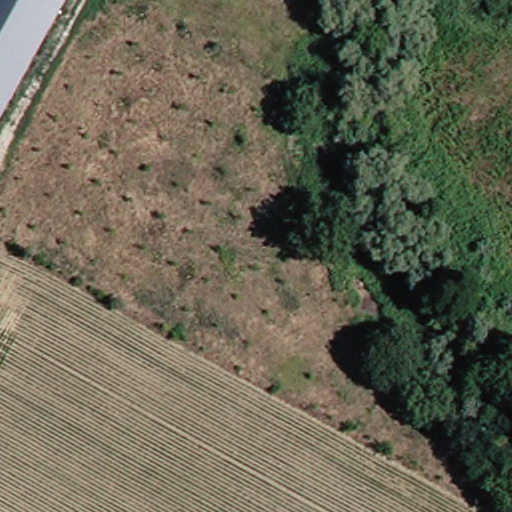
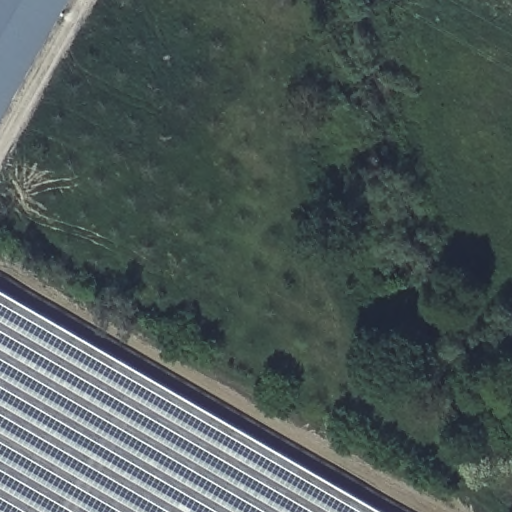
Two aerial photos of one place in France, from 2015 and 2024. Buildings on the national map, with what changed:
unchanged [(0,118),(0,0),(66,0),(0,118)]
new [(381,512),(0,512),(0,291),(381,512)]

